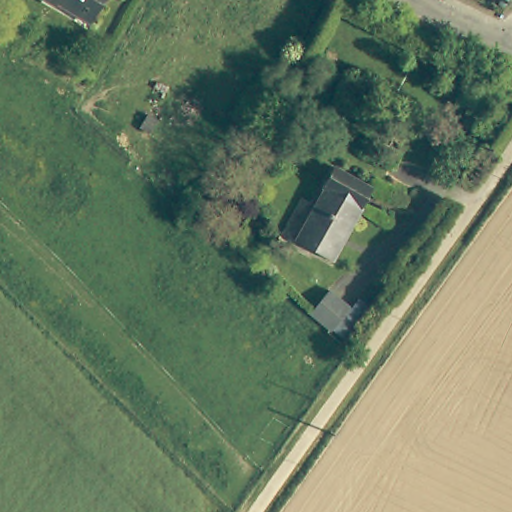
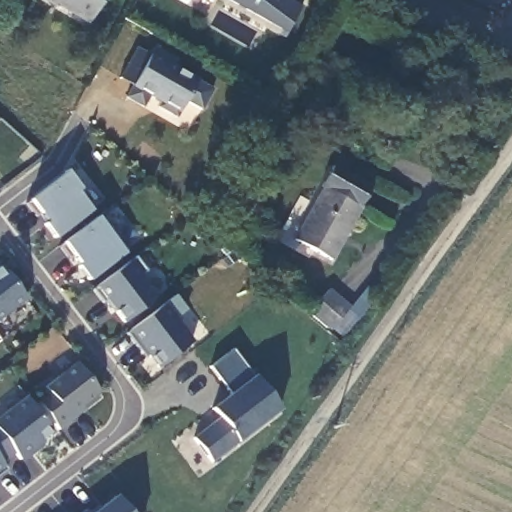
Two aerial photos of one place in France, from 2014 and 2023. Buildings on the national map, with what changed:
unchanged [(66,5),(65,7),(53,0),(113,0),(99,24),(66,5)]
new [(302,6),(288,34),(227,0),(291,0),(302,6)]
new [(126,97),(133,86),(120,79),(136,48),(150,55),(154,47),(176,60),(173,67),(197,80),(213,89),(202,110),(185,102),(180,114),(177,117),(157,107),(160,102),(149,96),(143,107),(126,97)]
new [(80,189),(76,192),(91,211),(56,239),(45,224),(47,222),(30,201),(67,172),(80,189)]
unchanged [(335,267),(298,247),(327,195),(325,193),(336,172),(375,194),(335,267)]
new [(97,217),(125,254),(90,281),(77,267),(80,265),(64,244),(97,217)]
new [(107,300),(102,303),(92,291),(135,256),(147,271),(140,276),(157,297),(125,322),(107,300)]
new [(26,300),(0,320),(0,266),(1,265),(26,300)]
demolished [(355,293),(335,317),(313,300),(333,276),(355,293)]
new [(330,288),(351,306),(368,286),(379,295),(340,343),(327,331),(329,328),(310,312),(330,288)]
new [(164,303),(176,294),(187,310),(176,318),(193,341),(159,369),(130,331),(164,303)]
new [(234,351),(255,377),(281,411),(238,443),(214,462),(194,438),(220,417),(212,408),(231,393),(210,367),(234,351)]
new [(39,403),(50,394),(45,387),(76,362),(100,393),(81,407),(85,411),(60,430),(39,403)]
new [(56,436),(22,462),(15,453),(3,463),(0,460),(0,416),(25,397),(56,436)]
new [(0,460),(5,466),(0,470),(0,460)]
new [(129,512),(95,512),(116,496),(129,512)]

